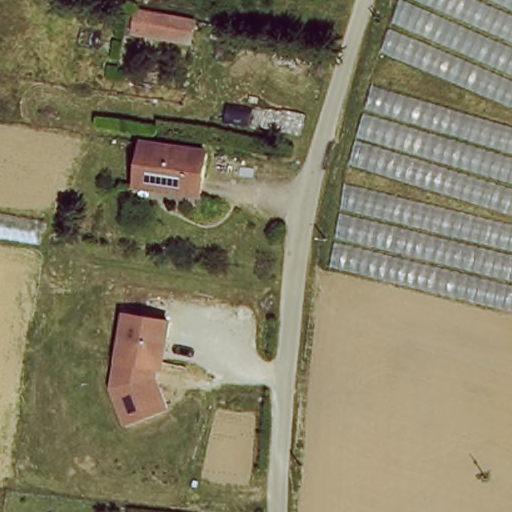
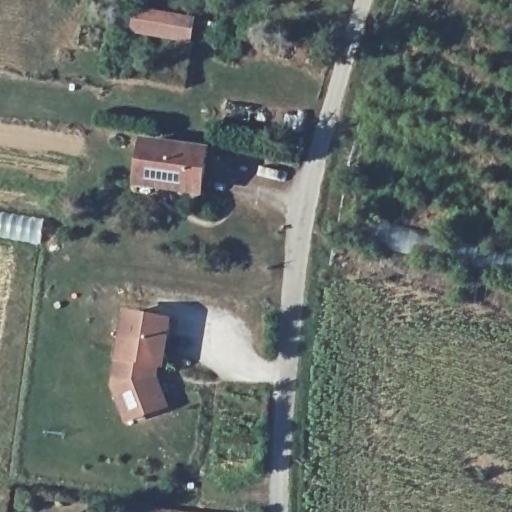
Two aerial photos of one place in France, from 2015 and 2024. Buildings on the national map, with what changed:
demolished [(332,273),(370,94),(403,0),(512,0),(512,319),(332,273)]
unchanged [(190,45),(124,32),(132,4),(196,19),(190,45)]
unchanged [(201,195),(131,182),(140,142),(210,156),(201,195)]
unchanged [(168,320),(161,366),(153,365),(151,376),(154,377),(165,407),(126,421),(113,386),(125,313),(168,320)]

